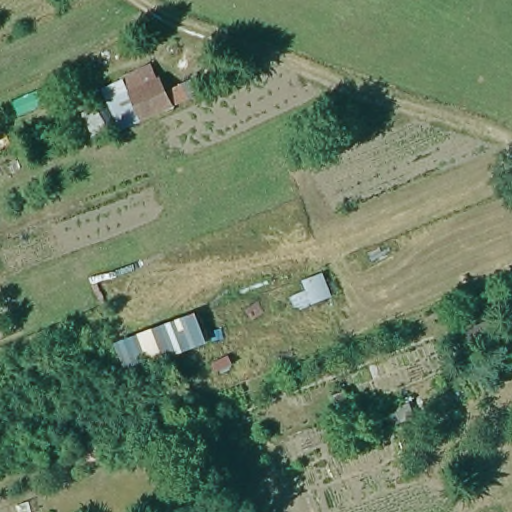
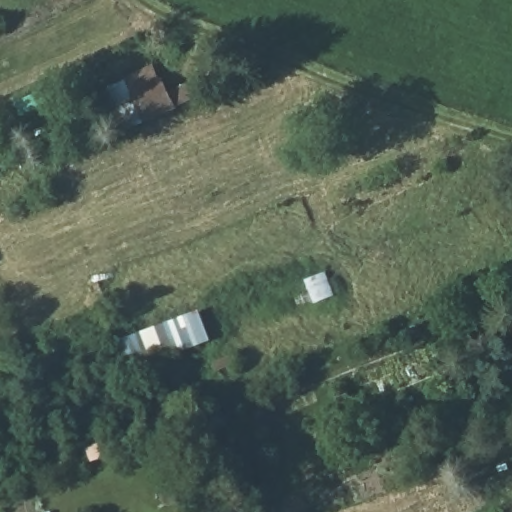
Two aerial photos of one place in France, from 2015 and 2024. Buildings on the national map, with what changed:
unchanged [(97,93),(145,72),(165,105),(117,133),(97,93)]
unchanged [(199,343),(117,371),(110,340),(190,310),(199,343)]

